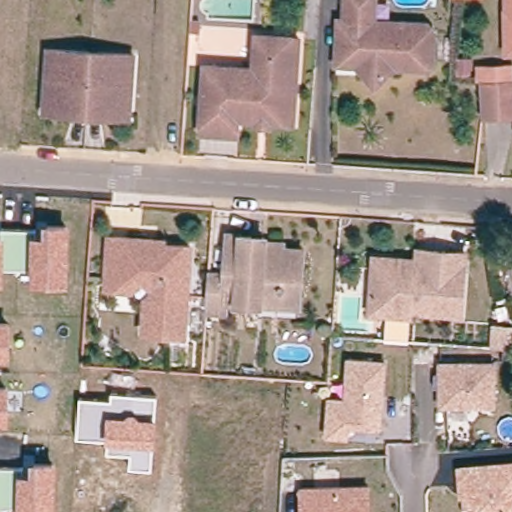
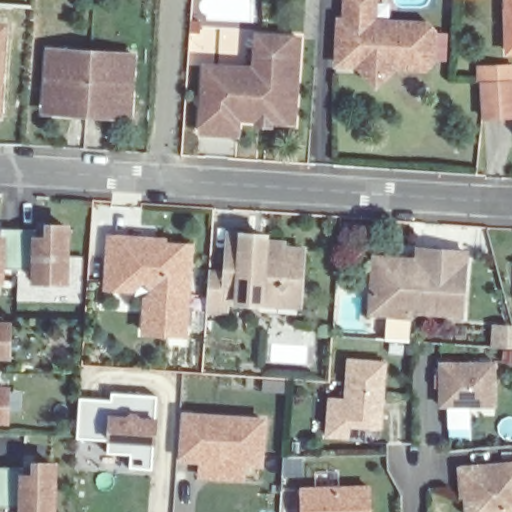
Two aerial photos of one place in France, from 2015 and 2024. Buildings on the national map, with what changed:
unchanged [(336,17),(343,17),(343,0),(373,0),(372,1),(371,18),(423,20),(431,27),(430,56),(424,62),(393,61),(372,79),(355,62),(335,61),(336,50),(336,17)]
unchanged [(505,0),(512,0),(512,55),(505,55),(505,0)]
new [(7,24),(1,117),(0,117),(0,24),(7,24)]
unchanged [(248,126),(248,122),(238,121),(237,137),(201,135),(206,59),(221,60),(253,61),(254,40),(296,42),(291,125),(273,124),(273,127),(248,126)]
unchanged [(116,118),(54,115),(42,115),(43,97),(44,51),(130,55),(128,100),(127,119),(116,118)]
unchanged [(484,60),(484,77),(470,77),(470,60),(484,60)]
unchanged [(512,66),(512,118),(506,118),(488,119),(489,85),(490,66),(512,66)]
unchanged [(0,234),(1,228),(35,230),(36,236),(43,235),(43,223),(69,225),(68,285),(31,286),(31,265),(4,265),(4,283),(0,283),(0,234)]
unchanged [(107,235),(136,237),(136,242),(159,244),(189,245),(184,330),(143,328),(145,295),(154,287),(144,280),(131,288),(123,288),(104,287),(107,235)]
unchanged [(263,304),(229,302),(229,312),(209,311),(212,279),(212,274),(229,275),(232,236),(255,237),(267,239),(267,245),(285,245),(284,250),(304,251),(302,286),(301,306),(263,304)]
unchanged [(377,254),(390,255),(418,256),(419,251),(439,253),(464,255),(464,273),(461,315),(413,311),(412,316),(387,315),(373,313),(374,293),(377,254)]
unchanged [(512,337),(492,336),(494,315),(512,316),(512,337)]
unchanged [(10,322),(10,360),(0,360),(0,322),(10,322)]
unchanged [(346,391),(348,351),(384,353),(380,416),(347,415),(347,426),(328,425),(330,390),(346,391)]
unchanged [(492,365),(493,406),(439,407),(439,365),(492,365)]
unchanged [(8,385),(8,425),(0,424),(0,385),(8,385)]
unchanged [(130,453),(107,452),(108,440),(76,437),(79,398),(111,400),(111,393),(156,395),(156,417),(154,445),(152,469),(129,467),(130,453)]
new [(267,417),(263,468),(245,466),(244,482),(197,480),(199,463),(178,461),(181,411),(267,417)]
unchanged [(23,467),(23,472),(30,472),(30,461),(56,462),(56,512),(17,512),(17,507),(0,507),(0,467),(23,467)]
unchanged [(466,495),(462,496),(461,485),(459,468),(512,463),(512,512),(468,512),(466,495)]
unchanged [(302,489),(369,487),(370,512),(303,512),(302,489)]

